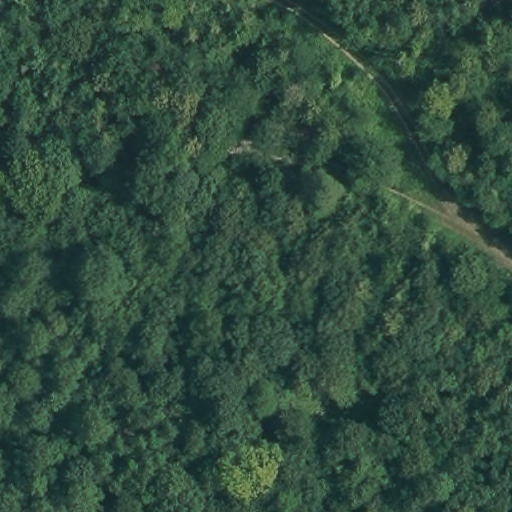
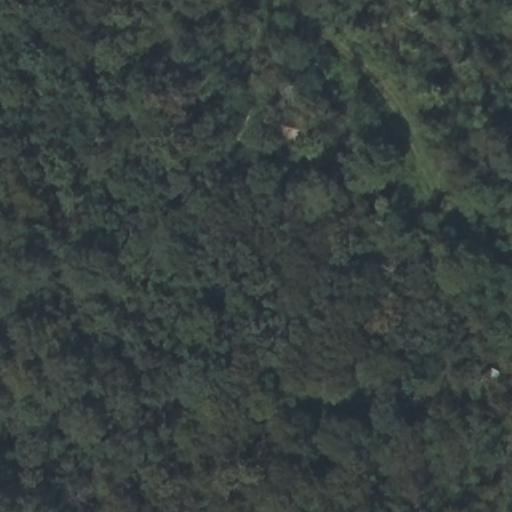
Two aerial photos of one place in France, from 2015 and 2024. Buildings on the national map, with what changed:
unchanged [(307,121),(295,147),(263,136),(274,107),(307,121)]

